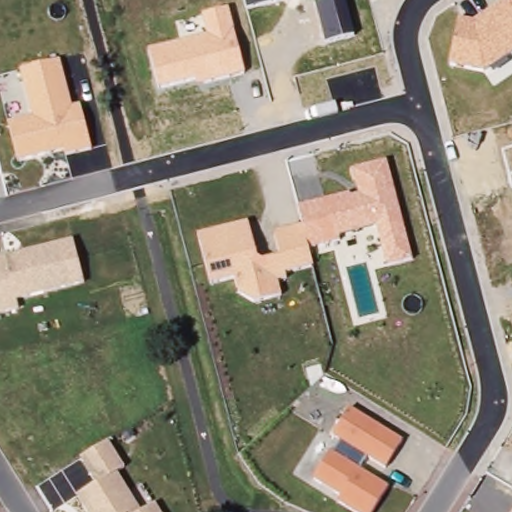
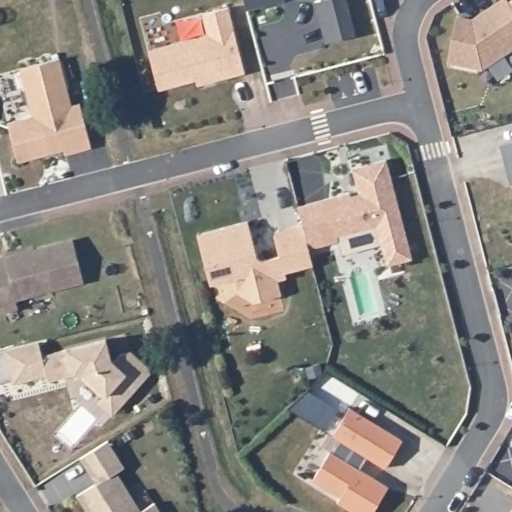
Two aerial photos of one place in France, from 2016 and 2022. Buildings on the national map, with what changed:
unchanged [(286,1),(248,11),(245,0),(286,0),(286,1)]
unchanged [(314,0),(348,0),(358,35),(327,43),(314,0)]
unchanged [(473,21),(504,0),(509,0),(511,3),(512,3),(512,55),(486,71),(451,67),(459,19),(473,21)]
unchanged [(198,86),(196,81),(161,89),(150,50),(209,36),(203,15),(228,8),(246,72),(198,86)]
unchanged [(73,108),(82,106),(93,148),(65,156),(64,153),(18,164),(8,123),(32,116),(21,71),(62,60),(73,108)]
new [(502,147),(512,145),(512,187),(508,173),(502,147)]
unchanged [(235,282),(210,288),(197,236),(248,221),(257,257),(263,262),(280,257),(274,232),(302,224),(297,207),(351,194),(352,198),(360,196),(352,170),(387,161),(414,260),(387,267),(375,227),(338,237),(339,241),(310,249),(315,266),(285,274),(286,279),(278,281),(282,296),(254,303),(239,296),(235,282)]
unchanged [(86,284),(17,302),(19,311),(0,317),(0,259),(74,240),(86,284)]
new [(97,403),(102,398),(81,379),(75,380),(73,375),(47,381),(46,375),(13,383),(5,350),(38,341),(42,356),(106,340),(111,360),(113,363),(120,355),(130,352),(148,368),(149,373),(123,402),(111,415),(97,403)]
unchanged [(385,471),(366,460),(360,470),(389,488),(374,512),(349,512),(337,504),(339,499),(312,481),(331,451),(333,452),(339,442),(332,438),(351,408),(403,440),(385,471)]
unchanged [(117,473),(140,512),(86,512),(77,496),(94,483),(80,459),(109,442),(126,468),(117,473)]
unchanged [(163,512),(143,512),(157,503),(163,512)]

